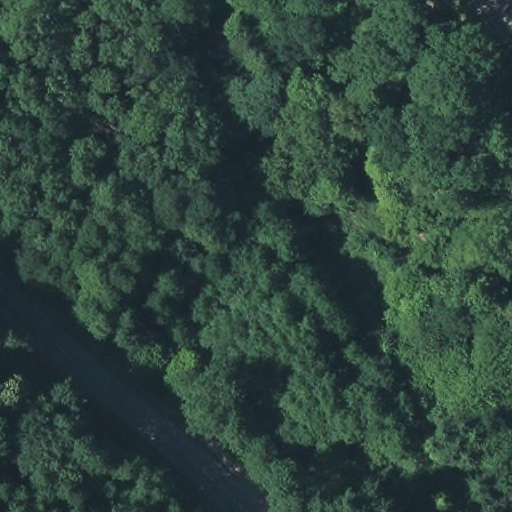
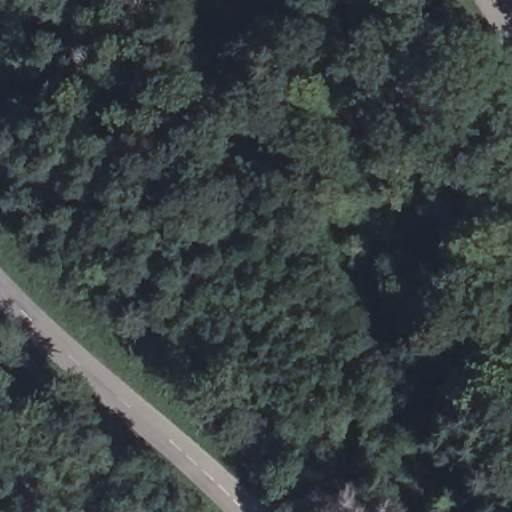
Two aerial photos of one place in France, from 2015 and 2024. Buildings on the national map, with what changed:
unchanged [(241,39),(236,64),(212,57),(216,37),(241,39)]

